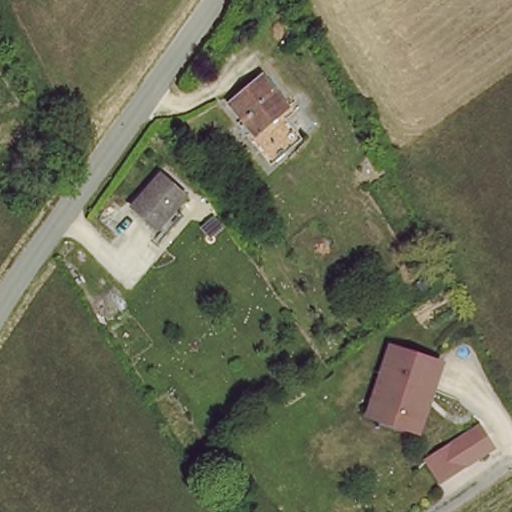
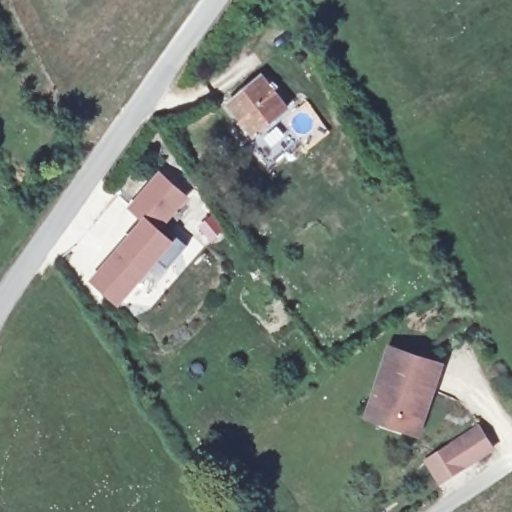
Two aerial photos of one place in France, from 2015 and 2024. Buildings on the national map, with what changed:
unchanged [(224,96),(259,70),(289,105),(254,131),(224,96)]
unchanged [(256,142),(287,119),(305,140),(274,164),(256,142)]
unchanged [(133,204),(162,174),(188,199),(159,228),(133,204)]
new [(159,228),(175,241),(179,237),(188,245),(167,270),(157,262),(148,275),(122,306),(92,279),(117,250),(147,216),(159,228)]
demolished [(113,233),(124,224),(147,247),(135,256),(113,233)]
unchanged [(387,355),(417,362),(437,366),(432,386),(421,425),(372,413),(380,385),(387,355)]
unchanged [(455,445),(464,440),(480,430),(486,439),(490,445),(478,452),(473,454),(467,455),(462,456),(456,446),(455,445)]

